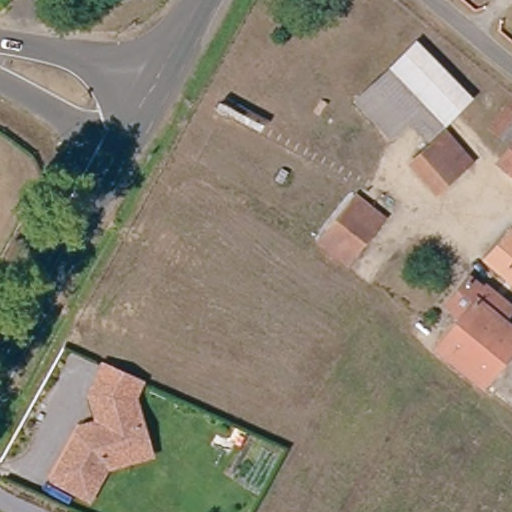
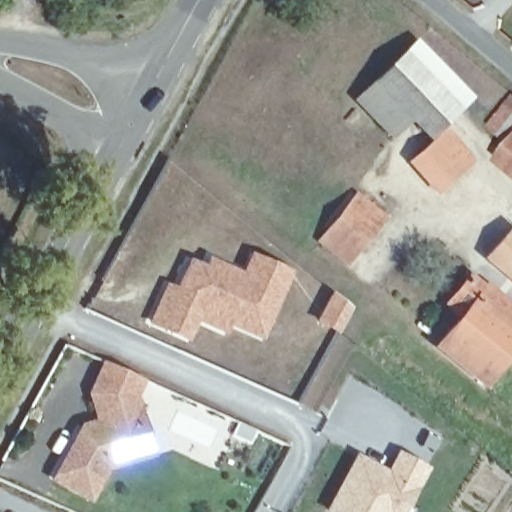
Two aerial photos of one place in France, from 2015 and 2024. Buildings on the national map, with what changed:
unchanged [(423,138),(405,119),(387,137),(350,99),(411,41),(465,97),(423,138)]
unchanged [(512,104),(512,130),(499,145),(478,126),(504,97),(512,104)]
unchanged [(440,132),(466,161),(431,191),(406,162),(440,132)]
unchanged [(512,183),(489,163),(512,136),(512,183)]
unchanged [(351,195),(379,217),(343,262),(315,240),(351,195)]
unchanged [(487,257),(472,244),(493,219),(508,231),(511,228),(512,229),(512,298),(477,269),(487,257)]
new [(160,302),(182,312),(188,297),(175,291),(185,269),(201,276),(204,268),(239,283),(251,256),(287,272),(267,319),(260,316),(253,333),(227,322),(229,316),(201,302),(185,337),(151,322),(160,302)]
unchanged [(445,323),(430,312),(461,271),(509,309),(500,322),(512,332),(512,342),(477,390),(424,351),(445,323)]
new [(332,294),(349,308),(337,330),(318,319),(332,294)]
unchanged [(121,464),(103,470),(85,501),(49,481),(77,428),(94,423),(85,396),(100,365),(133,380),(137,382),(130,399),(138,425),(126,429),(128,438),(135,460),(121,464)]
new [(356,457),(379,470),(377,473),(385,477),(397,454),(424,469),(400,512),(329,512),(327,510),(356,457)]

